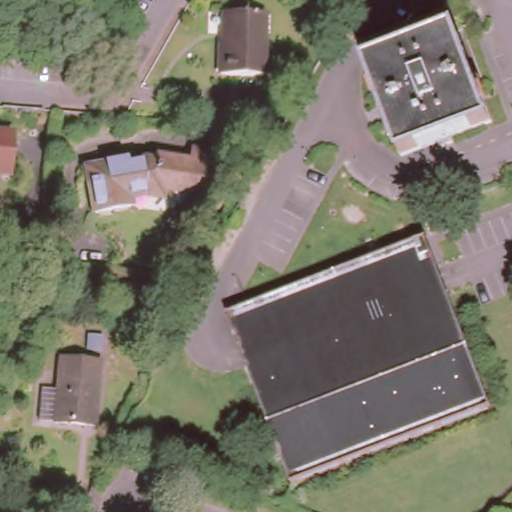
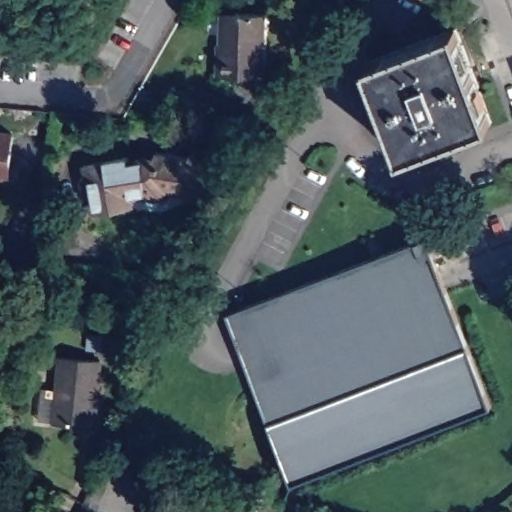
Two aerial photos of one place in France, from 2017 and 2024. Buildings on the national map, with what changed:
unchanged [(219,41),(223,41),(223,11),(264,12),(264,74),(219,74),(219,41)]
unchanged [(449,27),(486,120),(396,155),(361,61),(449,27)]
unchanged [(33,106),(31,122),(20,121),(20,117),(12,116),(13,105),(33,106)]
unchanged [(257,123),(274,124),(273,134),(256,132),(257,123)]
unchanged [(0,135),(19,137),(16,179),(0,178),(0,135)]
unchanged [(151,190),(134,187),(119,190),(121,201),(86,208),(78,171),(76,172),(73,159),(116,150),(118,155),(142,150),(143,144),(178,151),(180,137),(200,141),(198,155),(191,185),(153,177),(151,190)]
unchanged [(490,408),(290,482),(226,311),(426,237),(490,408)]
unchanged [(99,335),(97,350),(83,349),(84,334),(99,335)]
unchanged [(46,390),(63,391),(66,356),(107,361),(99,426),(59,422),(43,420),(46,390)]

